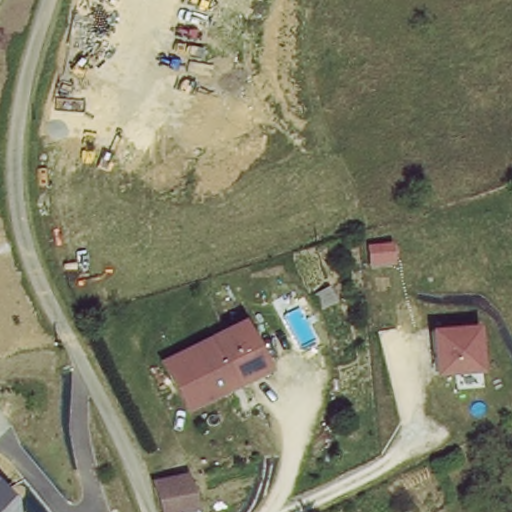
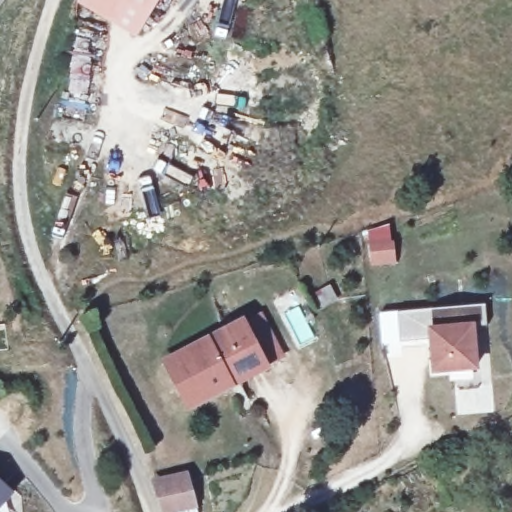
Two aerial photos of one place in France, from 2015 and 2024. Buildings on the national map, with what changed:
new [(78,2),(79,0),(157,0),(134,37),(78,2)]
unchanged [(471,322),(476,366),(429,370),(429,323),(471,322)]
unchanged [(235,389),(193,411),(171,368),(246,329),(261,357),(268,372),(235,389)]
unchanged [(152,484),(185,475),(193,500),(160,508),(152,484)]
unchanged [(0,494),(0,489),(3,491),(0,494)]

